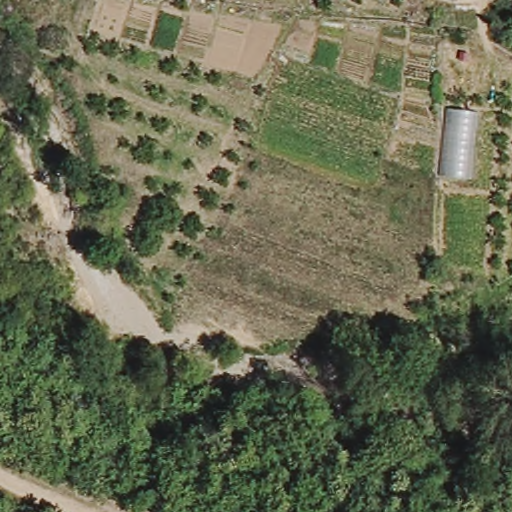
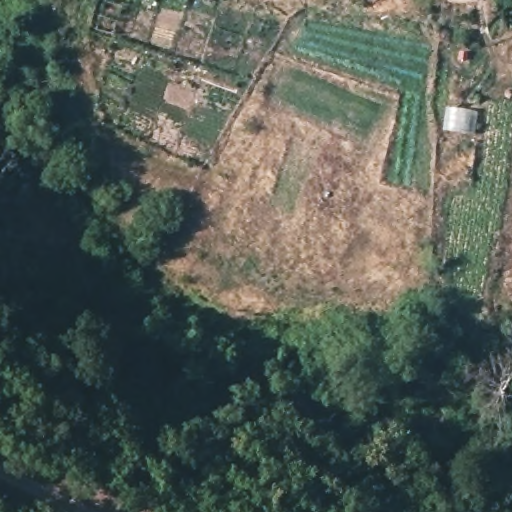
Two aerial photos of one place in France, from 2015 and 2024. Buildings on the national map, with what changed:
demolished [(477,111),(469,179),(436,176),(446,107),(477,111)]

